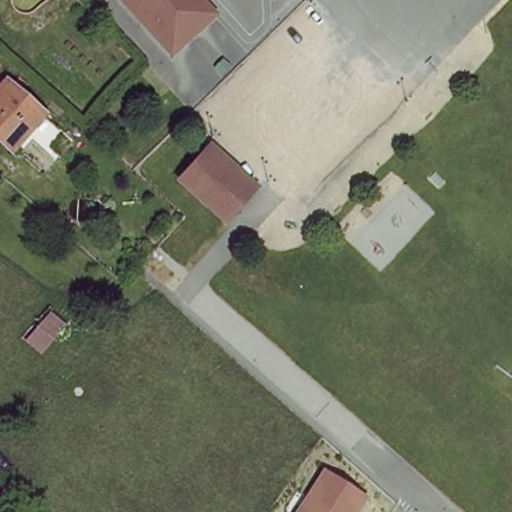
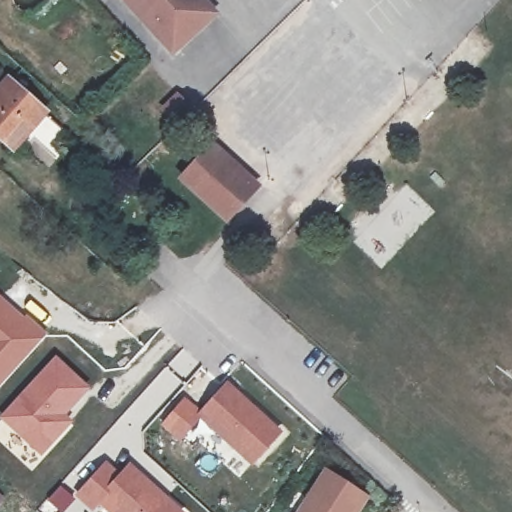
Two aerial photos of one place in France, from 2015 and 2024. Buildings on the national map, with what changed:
unchanged [(216,9),(174,49),(151,23),(130,0),(208,0),(216,9)]
unchanged [(18,148),(10,141),(6,145),(0,139),(0,79),(1,78),(56,126),(38,146),(28,136),(18,148)]
unchanged [(185,179),(213,146),(261,188),(233,221),(185,179)]
new [(26,316),(47,333),(41,340),(0,387),(0,298),(23,320),(26,316)]
demolished [(41,350),(25,336),(46,313),(61,327),(41,350)]
new [(0,419),(0,417),(55,357),(88,389),(65,415),(73,422),(40,456),(0,419)]
new [(278,435),(250,465),(198,417),(225,387),(278,435)]
new [(107,512),(97,504),(91,510),(76,497),(104,467),(118,480),(128,468),(176,512),(107,512)]
unchanged [(368,496),(358,512),(295,512),(323,467),(368,496)]

